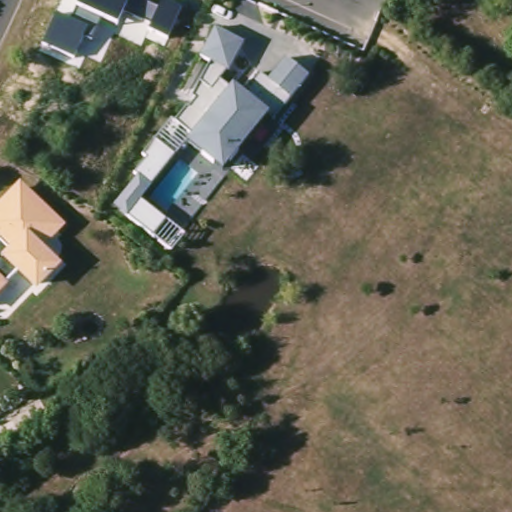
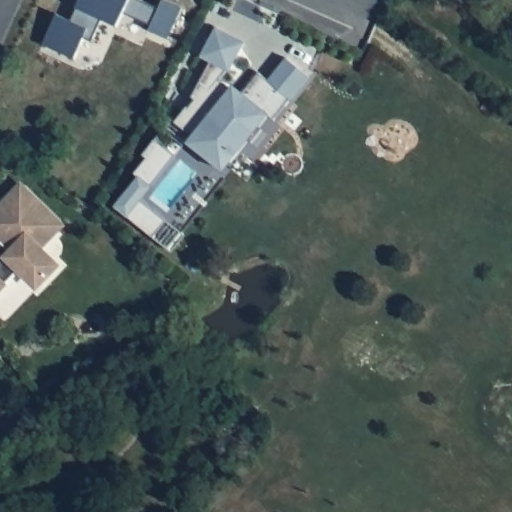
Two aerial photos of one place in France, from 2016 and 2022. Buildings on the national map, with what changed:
unchanged [(54,17),(70,22),(76,9),(80,0),(138,0),(158,9),(162,1),(182,9),(167,40),(149,32),(152,24),(123,11),(116,24),(101,17),(92,41),(86,40),(75,58),(43,44),(54,17)]
unchanged [(243,43),(222,80),(242,91),(260,73),(267,80),(287,59),(310,77),(273,117),(267,116),(219,171),(185,143),(169,126),(195,99),(192,95),(211,64),(199,57),(216,24),(243,43)]
unchanged [(141,202),(166,220),(153,237),(113,207),(138,174),(135,171),(146,160),(143,155),(154,140),(172,155),(141,202)]
unchanged [(51,262),(36,277),(29,277),(15,292),(1,277),(0,279),(0,193),(12,180),(19,180),(55,215),(55,222),(36,241),(51,255),(51,262)]

